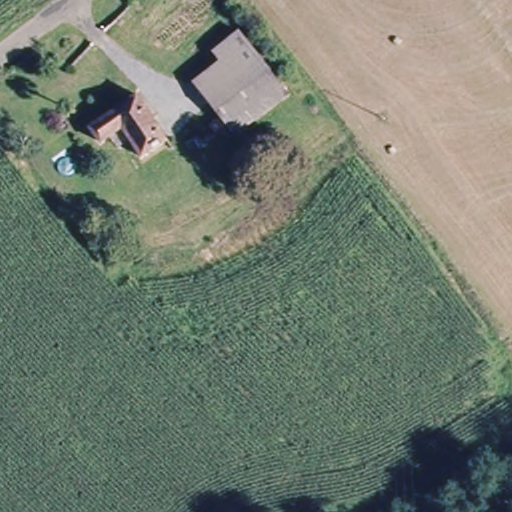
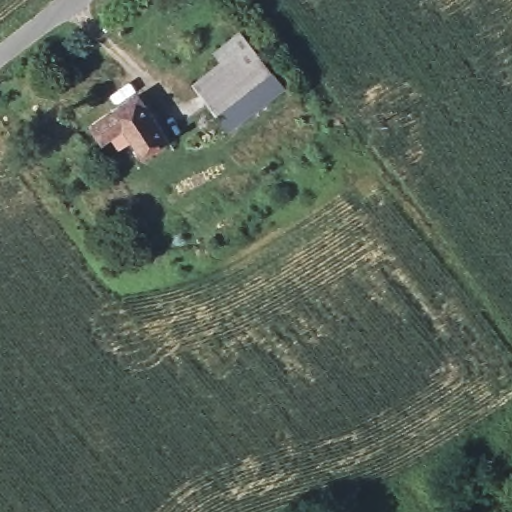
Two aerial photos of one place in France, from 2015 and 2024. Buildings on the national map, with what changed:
unchanged [(219,116),(199,88),(230,67),(222,56),(247,39),(272,76),(219,116)]
unchanged [(291,101),(236,139),(219,116),(272,76),(291,101)]
unchanged [(107,146),(95,127),(121,110),(141,98),(170,140),(146,159),(129,133),(119,138),(107,146)]

